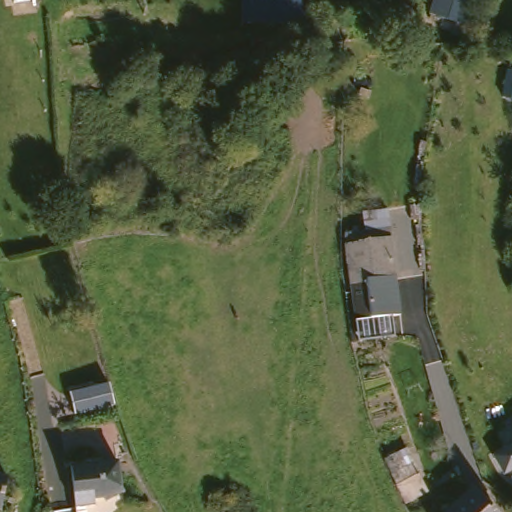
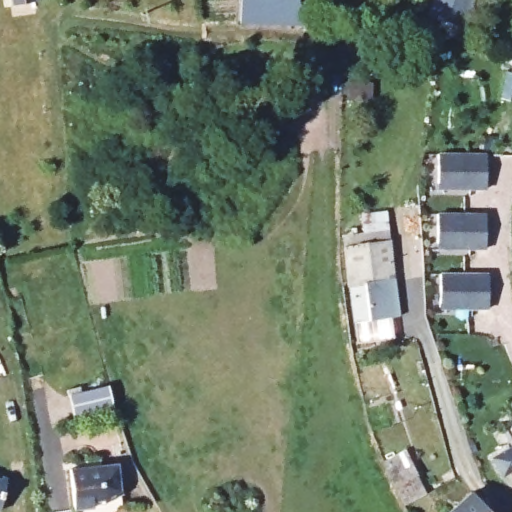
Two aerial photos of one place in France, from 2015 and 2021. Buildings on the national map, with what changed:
unchanged [(280,28),(242,27),(242,0),(299,0),(306,29),(280,28)]
unchanged [(447,13),(430,8),(433,0),(473,0),(467,19),(447,13)]
new [(512,75),(512,103),(501,101),(506,74),(512,75)]
new [(486,153),(486,190),(438,191),(439,153),(486,153)]
unchanged [(372,309),(372,317),(349,317),(348,221),(367,222),(367,204),(395,204),(395,234),(395,309),(372,309)]
new [(485,213),(485,250),(438,250),(438,212),(485,213)]
new [(487,275),(489,311),(442,309),(442,270),(487,275)]
unchanged [(119,389),(126,408),(85,419),(80,399),(119,389)]
demolished [(133,451),(132,451),(92,452),(92,432),(125,431),(133,451)]
unchanged [(512,437),(512,472),(487,452),(512,437)]
unchanged [(395,490),(392,491),(385,476),(390,474),(382,454),(406,445),(422,484),(397,493),(395,490)]
unchanged [(129,467),(128,507),(80,508),(80,469),(129,467)]
unchanged [(5,478),(0,508),(0,477),(5,478)]
unchanged [(469,489),(495,512),(448,512),(469,489)]

